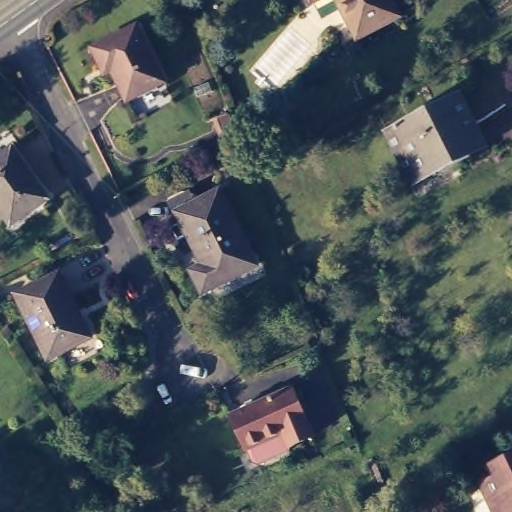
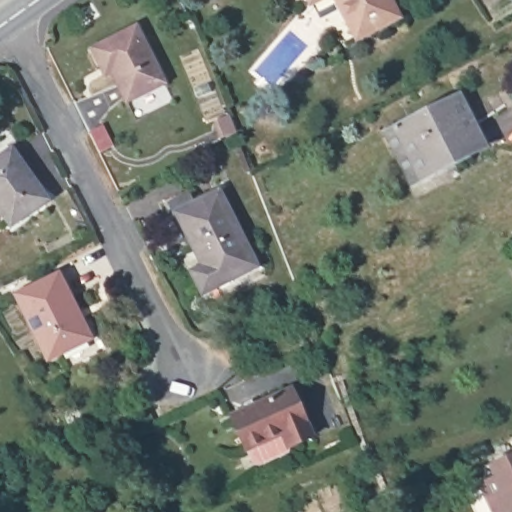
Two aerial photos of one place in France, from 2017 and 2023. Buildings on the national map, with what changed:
unchanged [(363,35),(344,0),(393,0),(402,16),(363,35)]
unchanged [(105,64),(95,45),(138,25),(167,81),(133,97),(118,69),(110,72),(105,64)]
unchanged [(408,178),(386,131),(450,105),(455,102),(467,128),(477,149),(408,178)]
unchanged [(0,154),(13,144),(48,193),(13,220),(0,202),(0,154)]
unchanged [(180,210),(221,189),(257,260),(207,288),(197,267),(207,262),(180,210)]
unchanged [(16,298),(55,277),(72,309),(70,310),(85,340),(49,361),(16,298)]
unchanged [(260,461),(255,459),(248,445),(233,411),(250,403),(247,398),(253,395),(255,400),(293,382),(315,432),(291,442),(289,448),(260,461)]
unchanged [(495,509),(482,480),(497,473),(492,460),(512,452),(512,512),(496,512),(495,509)]

